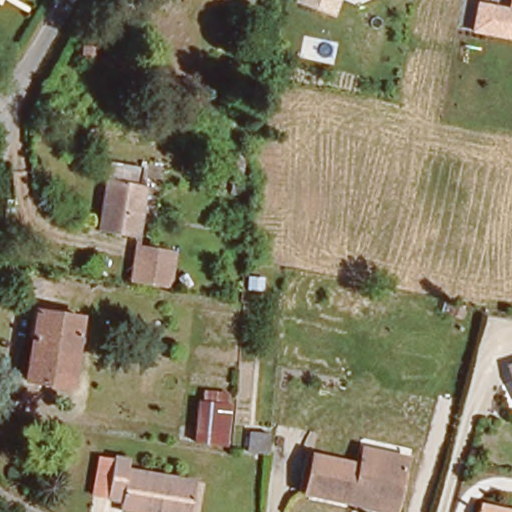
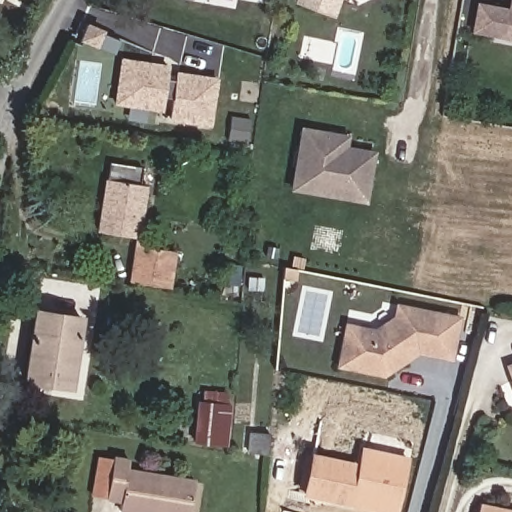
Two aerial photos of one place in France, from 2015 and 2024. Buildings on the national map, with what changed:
unchanged [(342,0),(336,17),(295,3),(297,0),(342,0)]
unchanged [(509,7),(511,0),(512,0),(512,42),(473,35),(480,2),(509,7)]
new [(167,121),(168,113),(113,105),(119,56),(168,63),(167,70),(218,77),(211,128),(167,121)]
new [(289,190),(300,126),(348,134),(346,145),(376,150),(367,204),(289,190)]
unchanged [(94,228),(104,159),(135,164),(132,182),(138,184),(130,235),(94,228)]
unchanged [(130,242),(169,254),(164,290),(119,278),(130,242)]
new [(452,361),(418,354),(383,378),(335,368),(345,323),(375,329),(393,317),(396,303),(462,316),(452,361)]
unchanged [(18,372),(37,305),(80,318),(61,385),(18,372)]
unchanged [(512,398),(499,364),(512,360),(512,398)]
new [(203,390),(228,393),(227,404),(202,402),(203,390)]
unchanged [(234,438),(202,433),(204,419),(235,423),(234,438)]
unchanged [(258,438),(259,419),(279,421),(278,440),(258,438)]
unchanged [(296,492),(302,453),(348,462),(350,446),(395,455),(388,497),(386,509),(347,502),(296,492)]
unchanged [(112,511),(114,500),(98,496),(80,492),(88,456),(105,459),(122,463),(121,470),(187,485),(182,512),(116,512),(112,511)]
unchanged [(476,498),(512,505),(512,512),(472,512),(476,498)]

